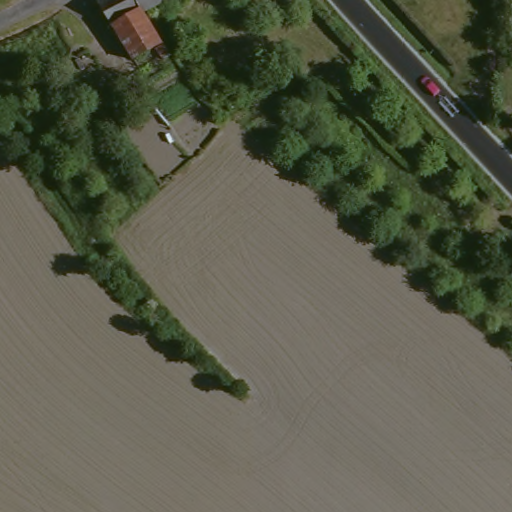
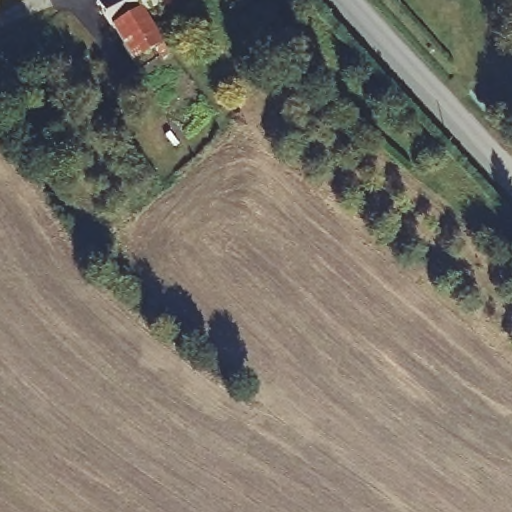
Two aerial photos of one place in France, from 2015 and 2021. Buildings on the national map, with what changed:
unchanged [(129,55),(103,0),(145,0),(149,8),(163,39),(129,55)]
unchanged [(145,0),(168,0),(149,8),(145,0)]

